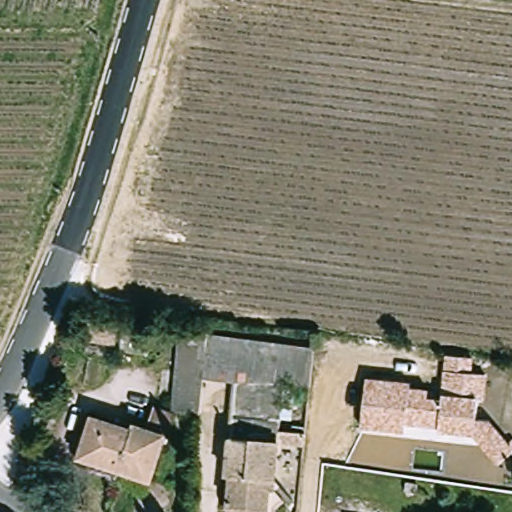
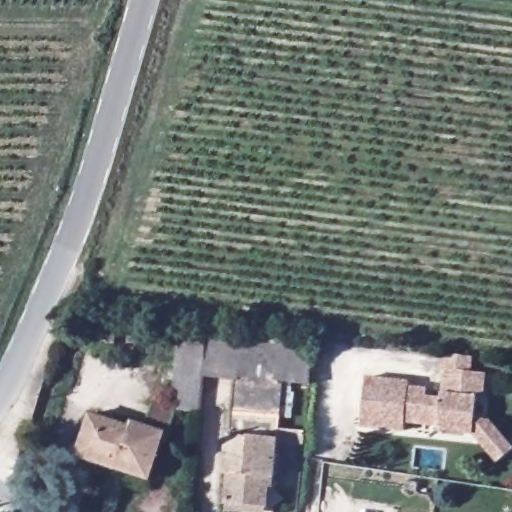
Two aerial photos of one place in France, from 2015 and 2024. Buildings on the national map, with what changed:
unchanged [(178,335),(210,338),(206,375),(204,401),(172,397),(178,335)]
unchanged [(315,351),(310,389),(285,386),(279,433),(305,436),(303,448),(277,446),(272,488),(268,487),(265,511),(225,506),(229,477),(223,476),(235,378),(206,375),(210,338),(315,351)]
unchanged [(472,373),(485,375),(482,400),(476,397),(475,417),(490,421),(512,451),(497,463),(473,436),(439,432),(440,426),(403,423),(402,432),(360,427),(364,378),(409,383),(409,388),(428,390),(428,398),(442,398),(443,393),(445,370),(445,356),(473,359),(472,373)]
unchanged [(86,442),(90,417),(135,426),(135,420),(145,422),(150,398),(173,402),(170,427),(166,427),(159,476),(97,465),(83,462),(86,442)]

